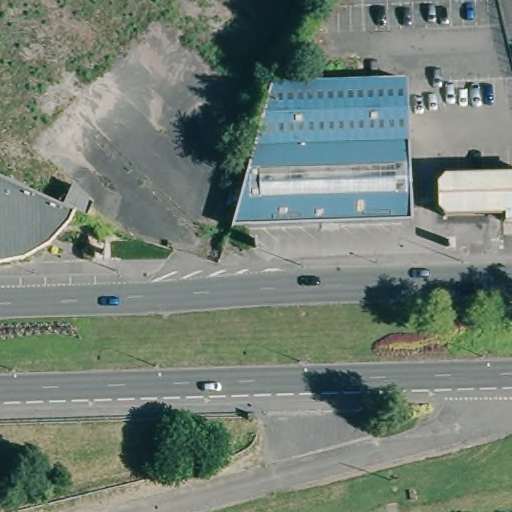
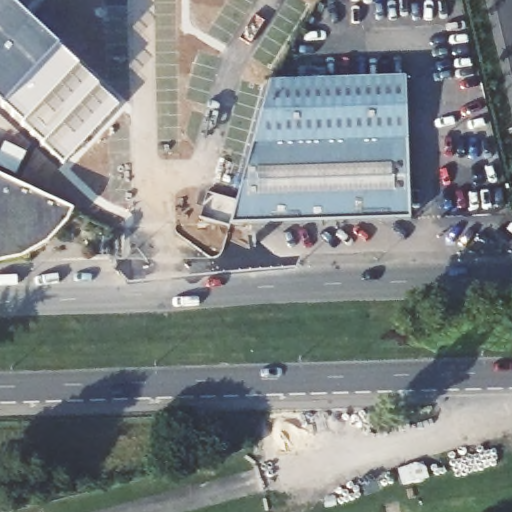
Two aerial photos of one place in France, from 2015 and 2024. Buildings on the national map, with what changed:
new [(5,109),(0,105),(0,0),(7,0),(60,50),(120,106),(64,164),(5,109)]
unchanged [(410,216),(232,223),(276,83),(410,82),(409,214),(410,216)]
demolished [(497,214),(497,206),(446,208),(439,200),(438,177),(447,169),(512,168),(512,214),(497,214)]
unchanged [(60,204),(72,210),(67,221),(47,243),(22,258),(0,262),(0,176),(56,202),(60,204)]
unchanged [(75,187),(94,206),(89,216),(61,203),(75,187)]

